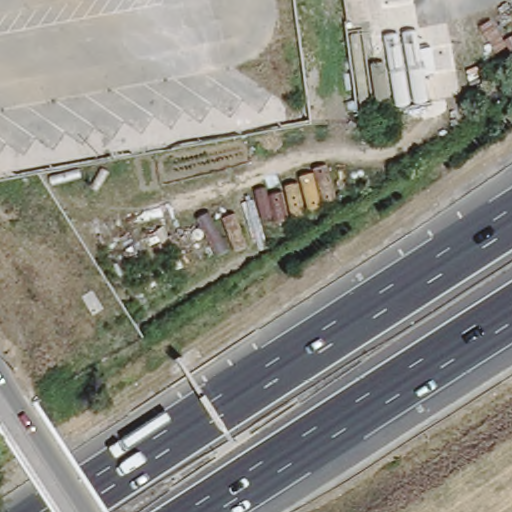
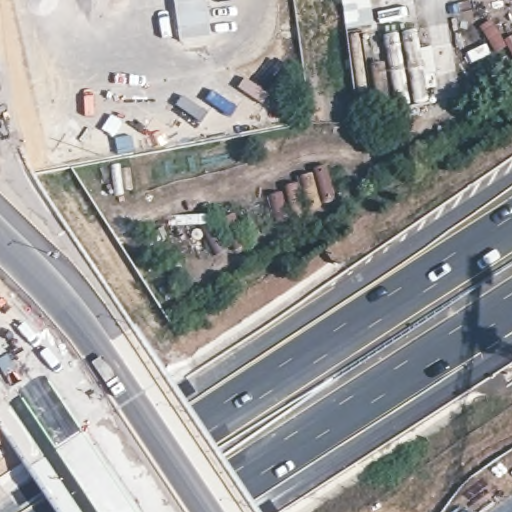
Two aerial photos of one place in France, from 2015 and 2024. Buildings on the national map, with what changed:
new [(211,37),(180,42),(174,0),(207,0),(211,37)]

